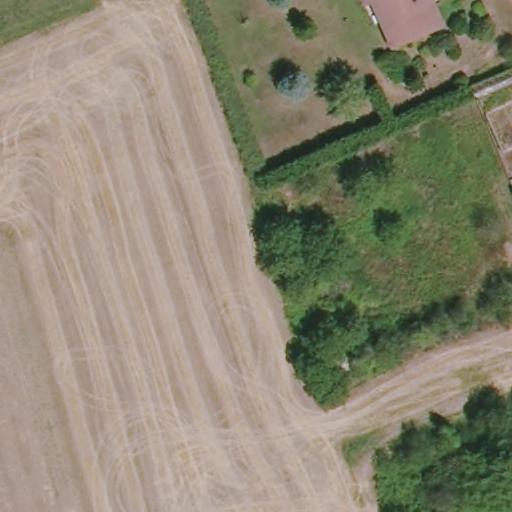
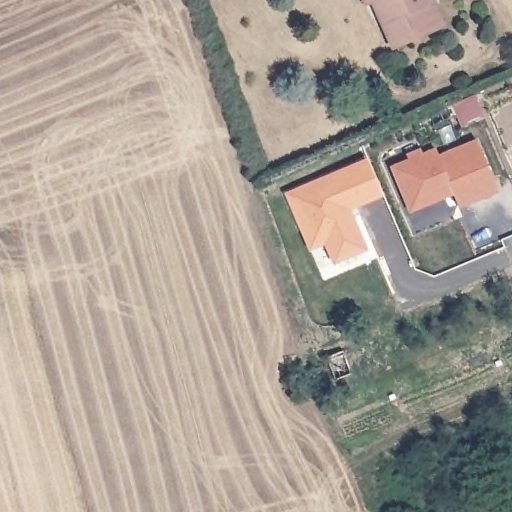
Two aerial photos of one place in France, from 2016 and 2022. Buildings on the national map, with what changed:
unchanged [(438,25),(431,29),(387,49),(367,3),(357,7),(353,0),(427,0),(438,25)]
new [(475,139),(497,189),(461,206),(456,193),(407,212),(391,166),(435,148),(437,153),(475,139)]
new [(325,243),(310,250),(285,193),(367,158),(382,195),(351,208),(367,250),(334,264),(325,243)]

